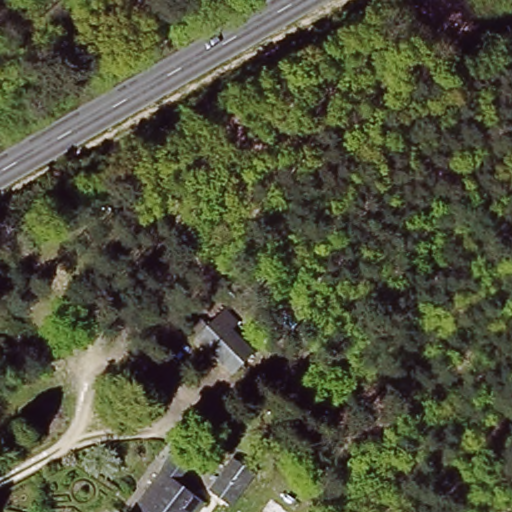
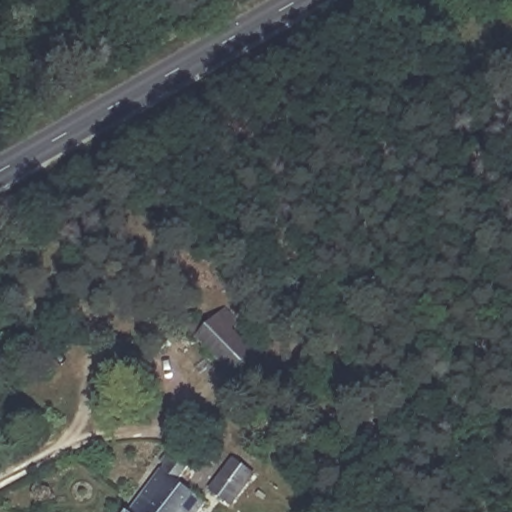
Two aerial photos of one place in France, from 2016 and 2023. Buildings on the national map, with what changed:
unchanged [(218,312),(256,353),(235,374),(196,335),(218,312)]
unchanged [(168,455),(185,468),(173,483),(198,502),(191,512),(124,512),(168,455)]

